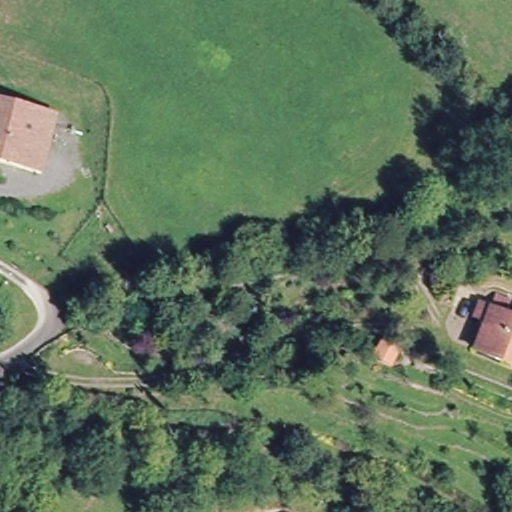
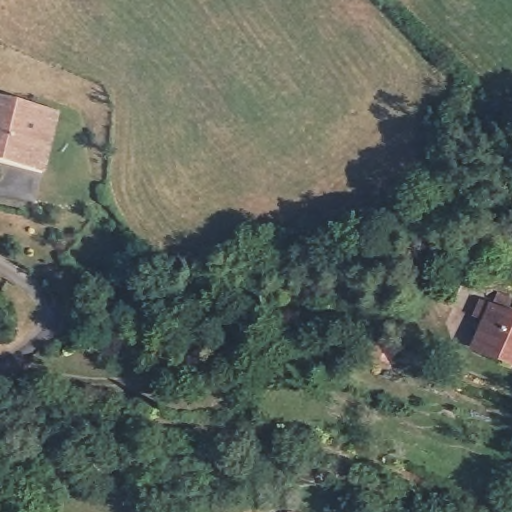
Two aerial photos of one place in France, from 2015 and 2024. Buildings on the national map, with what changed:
unchanged [(43,170),(28,167),(0,163),(0,106),(38,113),(53,116),(43,170)]
unchanged [(508,311),(497,307),(502,298),(512,302),(508,311)]
unchanged [(489,327),(477,322),(483,307),(495,312),(512,318),(512,369),(504,366),(479,355),(489,327)]

